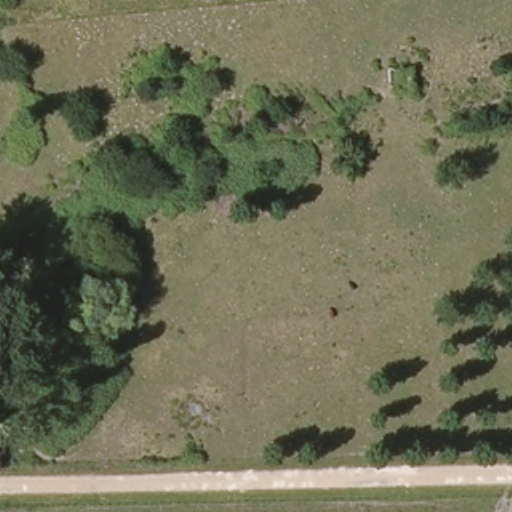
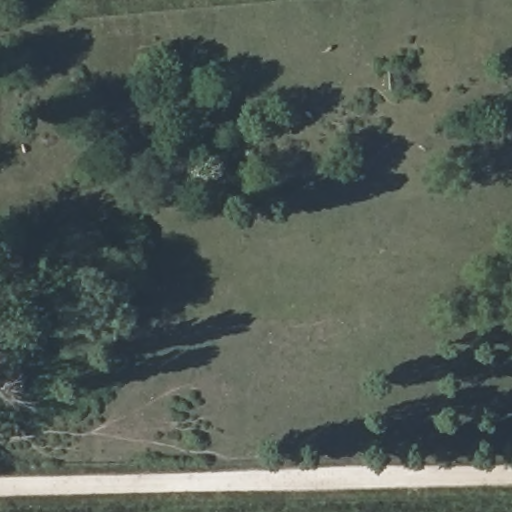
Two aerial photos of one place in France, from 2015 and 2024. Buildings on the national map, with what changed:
unchanged [(407,87),(388,88),(388,66),(406,64),(407,87)]

